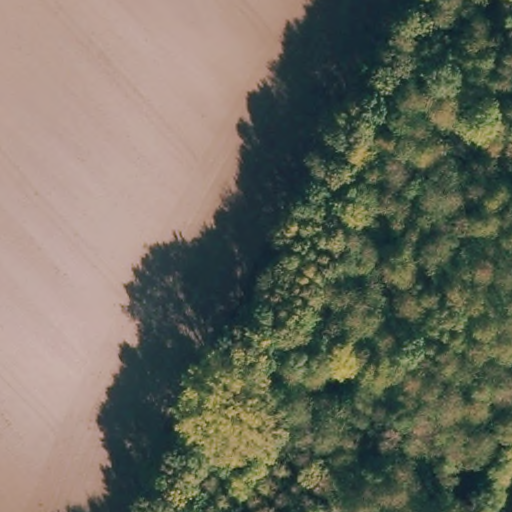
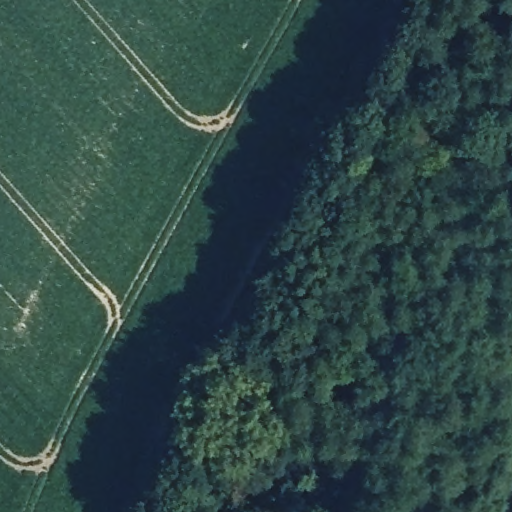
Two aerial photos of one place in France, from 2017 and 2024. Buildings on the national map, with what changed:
unchanged [(483,137),(473,162),(442,151),(451,126),(483,137)]

